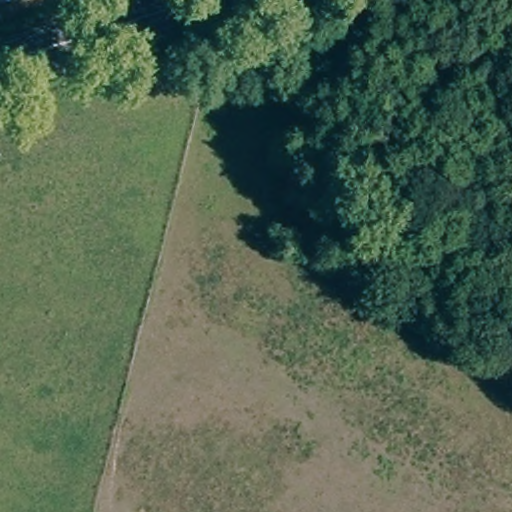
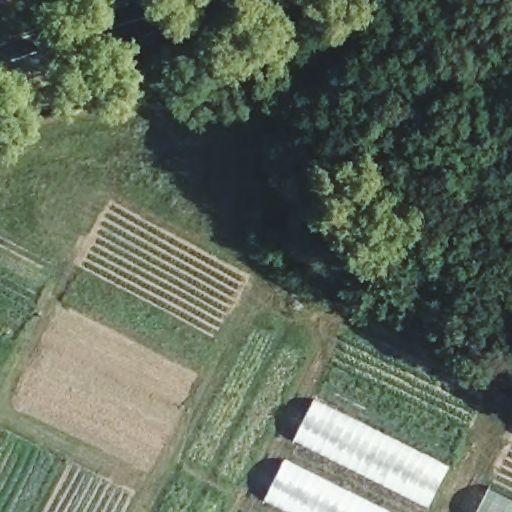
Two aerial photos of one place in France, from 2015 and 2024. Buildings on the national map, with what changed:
new [(293,442),(315,400),(450,467),(429,508),(293,442)]
new [(286,460),(391,512),(286,512),(265,502),(286,460)]
new [(512,512),(478,512),(490,487),(512,498),(512,512)]

